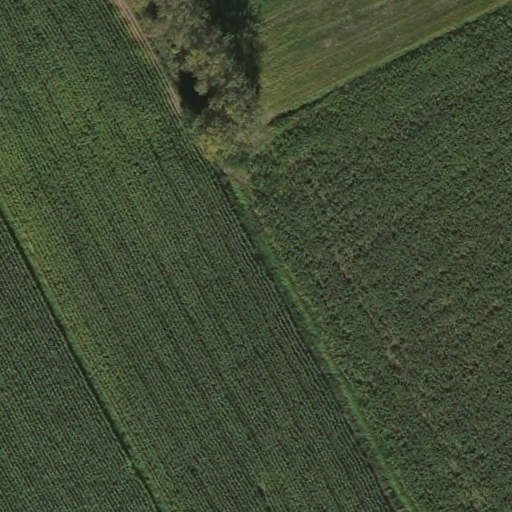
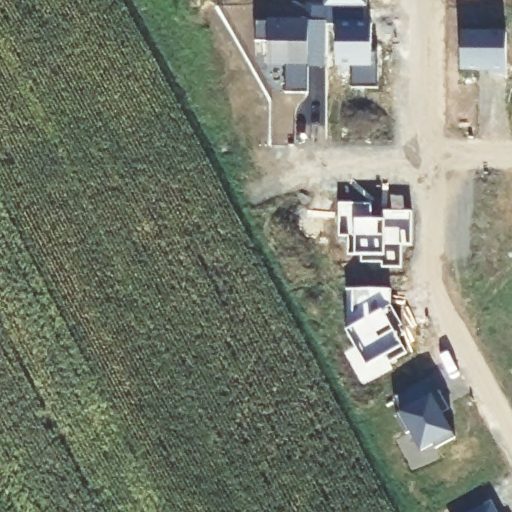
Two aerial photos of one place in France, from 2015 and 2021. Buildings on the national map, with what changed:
new [(366,0),(366,7),(363,7),(326,7),(324,6),(324,0),(366,0)]
new [(377,65),(376,89),(350,89),(351,66),(336,66),(337,26),(326,25),(326,22),(326,7),(363,7),(363,25),(371,25),(370,53),(377,53),(377,65)]
new [(307,68),(307,94),(284,93),(284,64),(266,64),(267,42),(255,41),(255,21),(326,22),(326,25),(325,57),(325,68),(307,68)]
new [(461,31),(506,31),(506,72),(490,72),(490,68),(461,67),(461,31)]
new [(353,325),(354,287),(391,288),(391,303),(403,324),(400,325),(405,333),(399,337),(407,352),(389,362),(385,355),(367,365),(347,329),(353,325)]
new [(427,378),(435,392),(439,389),(449,407),(442,412),(455,436),(436,447),(438,451),(426,457),(416,438),(412,440),(396,412),(402,410),(394,396),(427,378)]
new [(492,500),(499,512),(471,512),(492,500)]

